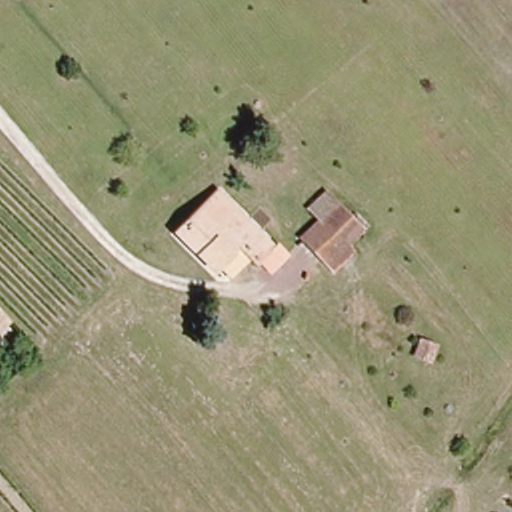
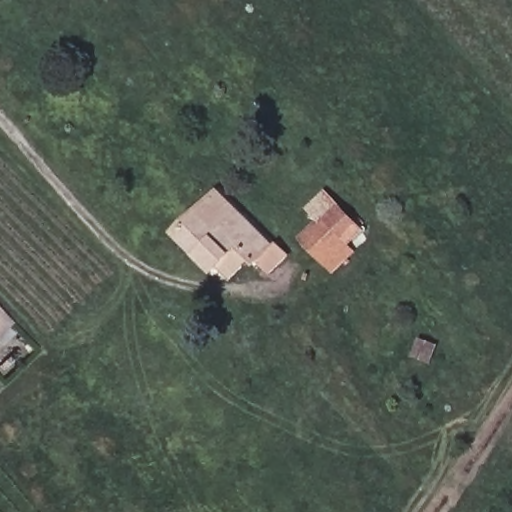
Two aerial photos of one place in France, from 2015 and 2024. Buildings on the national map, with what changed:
unchanged [(212,260),(204,267),(171,231),(217,187),(268,243),(273,239),(283,251),(265,270),(254,258),(252,262),(243,252),(224,270),(212,260)]
unchanged [(342,242),(318,217),(310,205),(326,192),(359,230),(342,242)]
unchanged [(318,217),(342,242),(350,254),(331,268),(327,272),(296,237),(300,233),(318,217)]
unchanged [(0,328),(0,308),(10,317),(0,328)]

